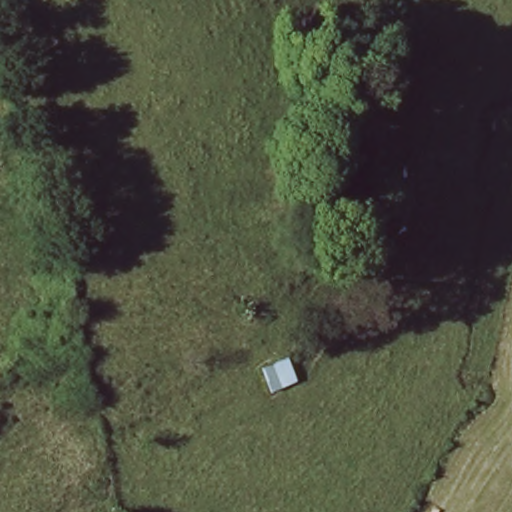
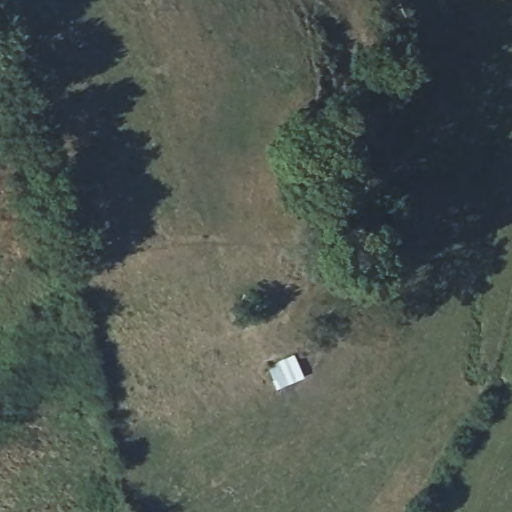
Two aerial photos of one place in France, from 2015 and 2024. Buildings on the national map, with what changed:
unchanged [(281,389),(272,366),(296,353),(306,378),(281,389)]

